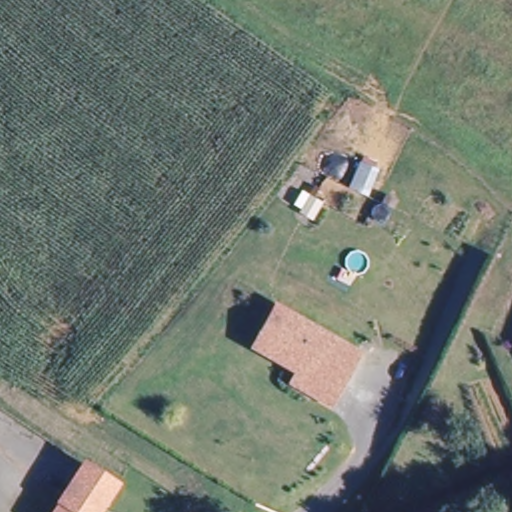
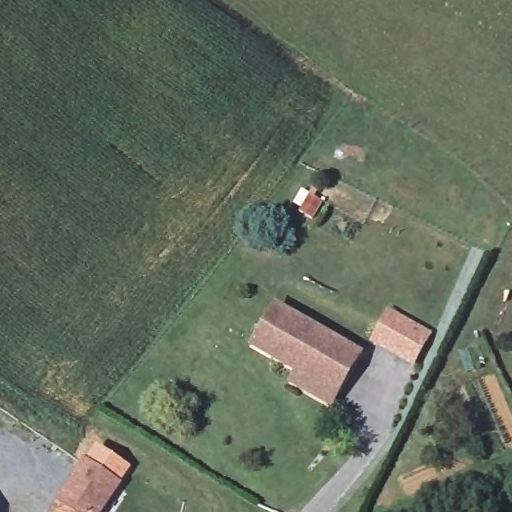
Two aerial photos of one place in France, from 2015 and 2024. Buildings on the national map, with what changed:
unchanged [(297,381),(304,370),(258,345),(280,305),(362,350),(340,389),(333,401),(297,381)]
new [(370,343),(390,309),(432,333),(414,366),(370,343)]
unchanged [(59,500),(71,482),(82,465),(115,486),(102,503),(95,512),(54,512),(61,501),(59,500)]

